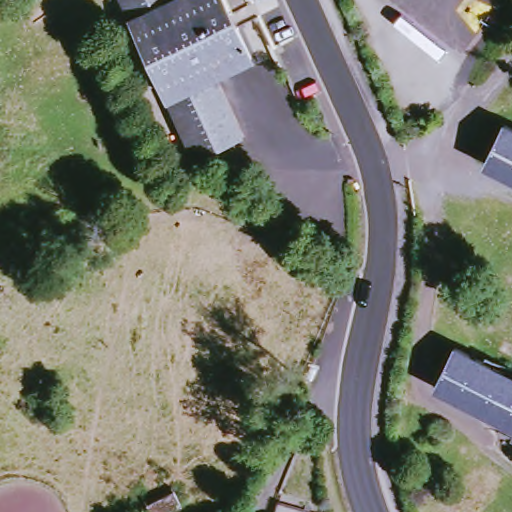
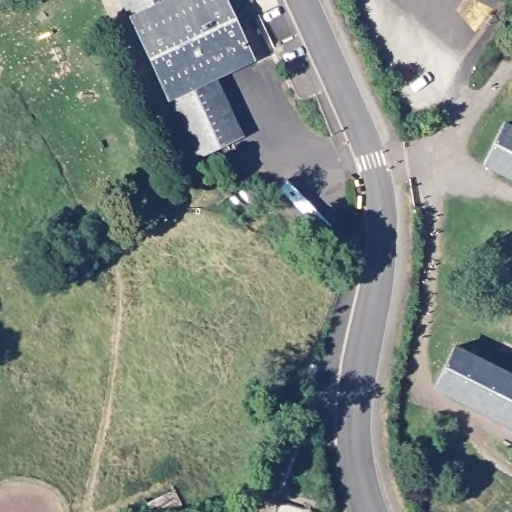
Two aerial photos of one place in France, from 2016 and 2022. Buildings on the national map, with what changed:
unchanged [(226,32),(241,65),(205,82),(231,142),(185,162),(109,0),(160,0),(164,7),(178,0),(238,0),(248,22),(226,32)]
unchanged [(499,121),(512,128),(512,178),(477,158),(499,121)]
unchanged [(509,425),(431,382),(455,346),(497,370),(512,349),(512,438),(505,433),(509,425)]
unchanged [(145,507),(135,512),(113,512),(109,505),(135,490),(145,507)]
unchanged [(278,500),(279,499),(313,512),(273,512),(278,500)]

